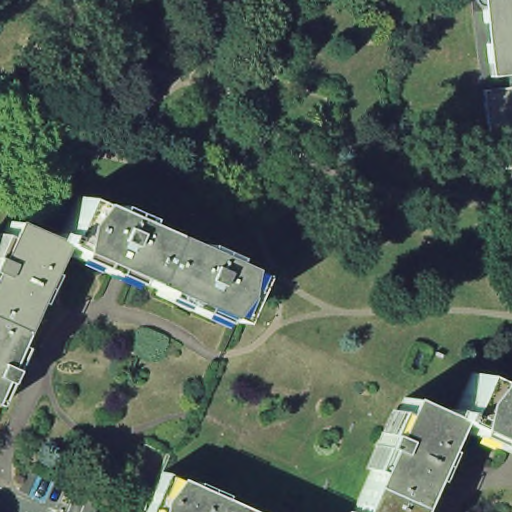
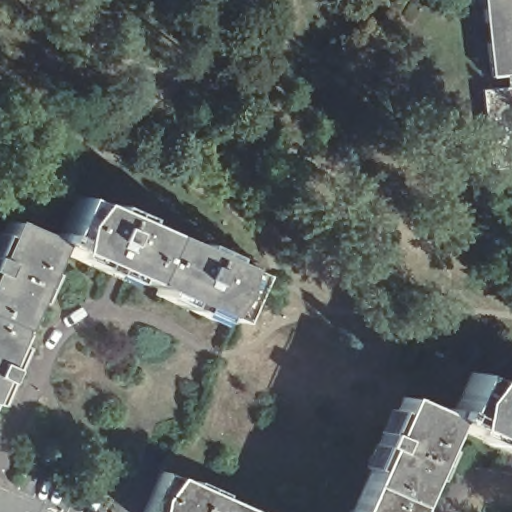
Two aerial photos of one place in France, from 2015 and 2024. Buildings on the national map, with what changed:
unchanged [(495,173),(479,161),(478,149),(487,137),(475,127),(472,95),(511,90),(510,83),(510,78),(502,79),(480,81),(477,48),(487,36),(475,26),(473,15),(479,8),(485,0),(498,0),(509,8),(512,5),(512,164),(506,172),(495,173)]
unchanged [(25,182),(50,193),(52,188),(57,190),(55,196),(72,203),(55,241),(50,239),(7,220),(25,182)]
unchanged [(228,320),(204,309),(192,304),(189,310),(175,304),(178,298),(129,276),(105,265),(102,271),(89,265),(92,259),(55,243),(55,241),(72,203),(75,195),(250,273),(232,312),(228,320)]
unchanged [(7,220),(50,239),(55,241),(55,243),(4,356),(0,365),(0,238),(7,220)]
unchanged [(407,390),(415,370),(407,366),(415,346),(433,354),(434,351),(441,354),(440,357),(472,371),(451,418),(403,397),(407,390)]
unchanged [(6,368),(0,381),(0,365),(6,368)]
unchanged [(492,443),(478,438),(480,433),(450,419),(451,418),(472,371),(512,390),(512,447),(493,438),(492,443)]
unchanged [(8,385),(0,403),(0,381),(8,385)]
unchanged [(450,419),(408,512),(352,512),(381,447),(375,444),(381,431),(387,434),(403,397),(451,418),(450,419)]
unchanged [(144,512),(158,480),(162,471),(253,512),(144,512)]

